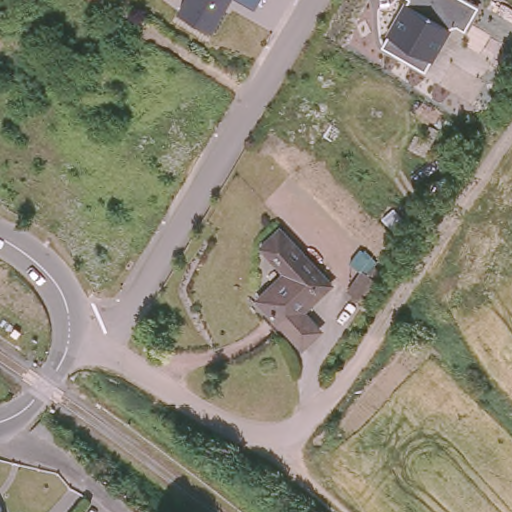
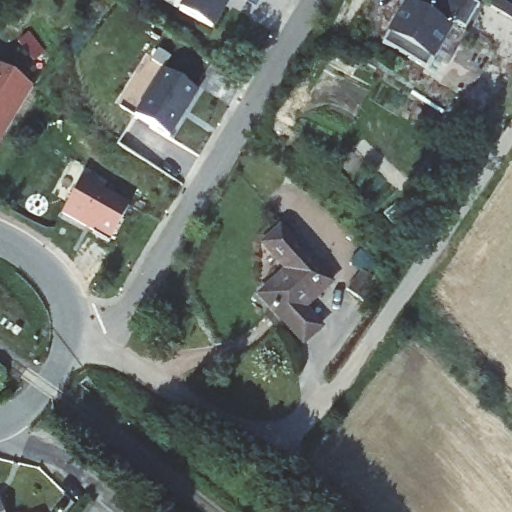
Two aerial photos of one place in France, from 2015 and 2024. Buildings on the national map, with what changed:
unchanged [(211,30),(177,11),(183,0),(228,0),(211,30)]
unchanged [(257,8),(242,0),(261,0),(257,8)]
unchanged [(407,0),(467,0),(477,6),(465,29),(458,25),(452,26),(426,71),(382,44),(407,0)]
new [(0,140),(0,65),(33,85),(0,140)]
new [(198,91),(168,139),(132,118),(162,69),(198,91)]
new [(130,204),(109,242),(60,216),(82,177),(130,204)]
unchanged [(330,280),(283,323),(257,293),(283,269),(260,243),(280,224),(330,280)]
unchanged [(9,512),(0,512),(0,501),(5,499),(9,512)]

